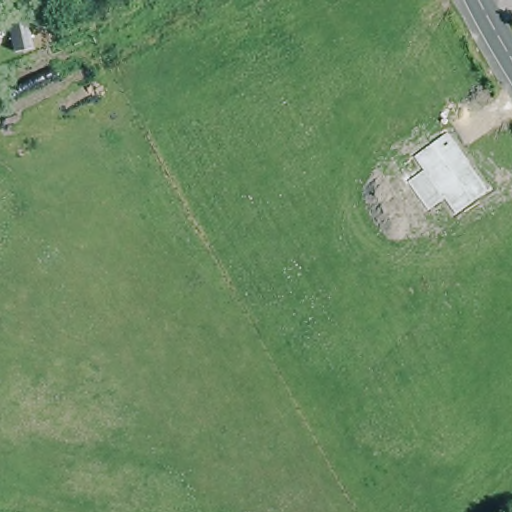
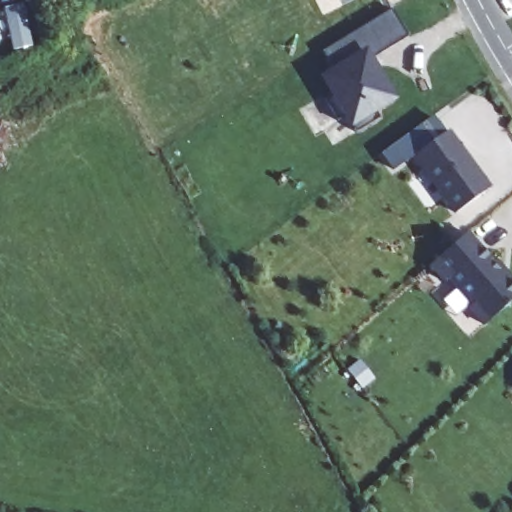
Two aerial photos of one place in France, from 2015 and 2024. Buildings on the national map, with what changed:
new [(348,0),(354,0),(349,2),(348,0)]
new [(394,9),(409,37),(370,60),(392,99),(374,109),(379,117),(355,131),(345,114),(337,119),(325,97),(334,92),(324,75),(334,70),(323,49),(394,9)]
unchanged [(492,190),(457,214),(447,200),(429,211),(409,182),(424,171),(414,155),(448,133),(492,190)]
new [(509,278),(512,275),(512,306),(489,326),(474,308),(477,305),(454,278),(449,282),(435,265),(472,235),(509,278)]

